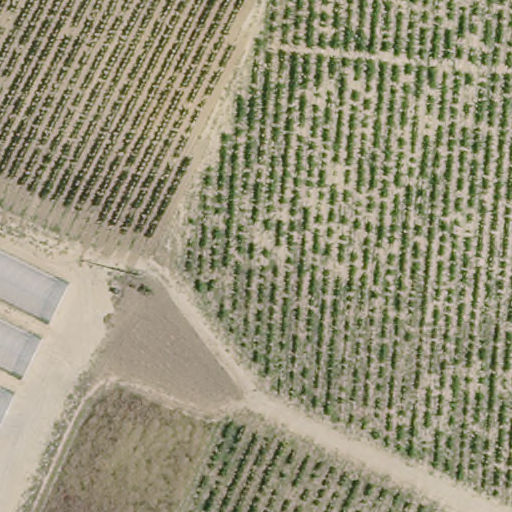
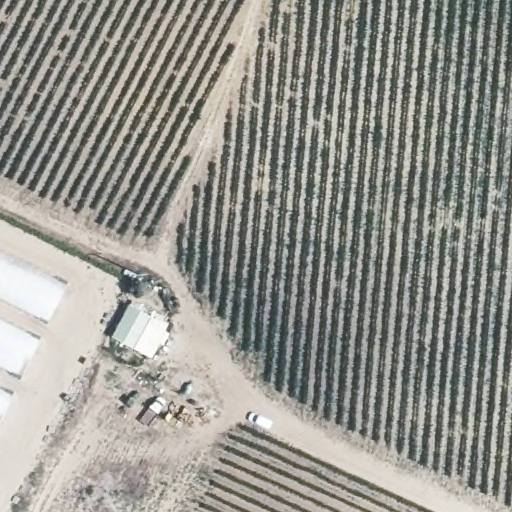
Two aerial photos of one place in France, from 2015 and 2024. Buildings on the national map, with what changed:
unchanged [(49,324),(0,300),(0,250),(68,283),(49,324)]
new [(129,301),(155,316),(152,322),(168,330),(153,358),(111,336),(129,301)]
unchanged [(0,368),(0,319),(41,339),(21,378),(0,368)]
unchanged [(0,387),(13,394),(0,423),(0,387)]

